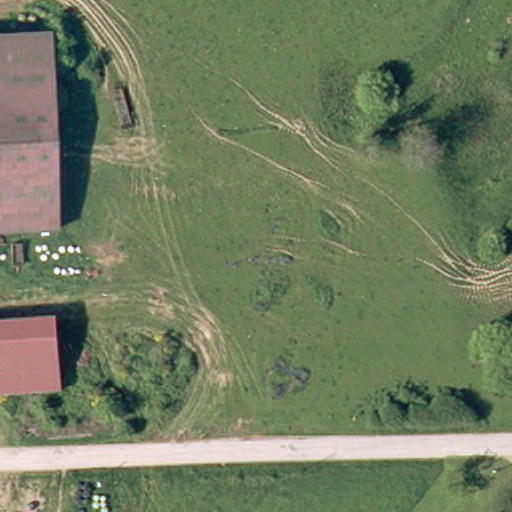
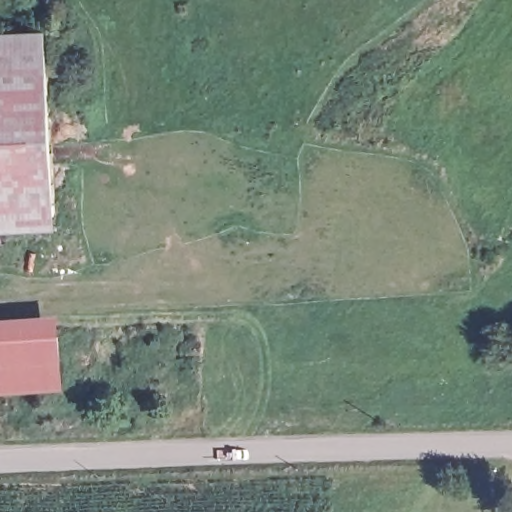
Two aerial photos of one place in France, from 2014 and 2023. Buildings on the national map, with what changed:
unchanged [(43,27),(57,226),(0,229),(0,30),(43,27)]
unchanged [(62,381),(0,383),(0,310),(58,307),(62,381)]

